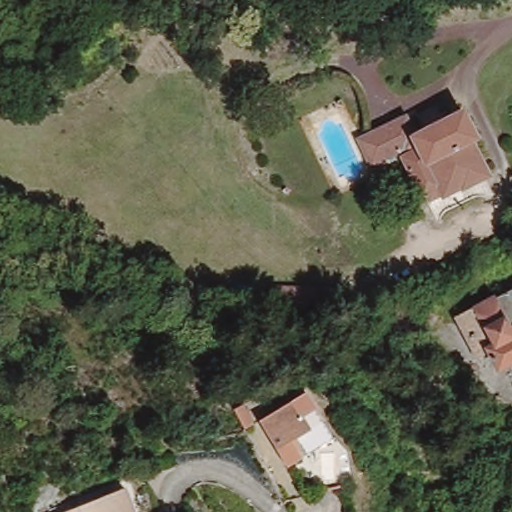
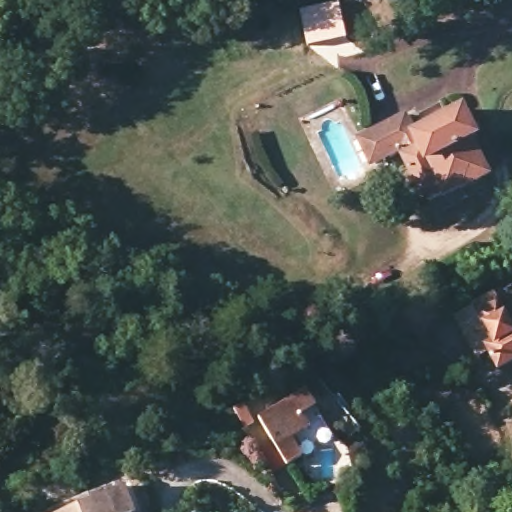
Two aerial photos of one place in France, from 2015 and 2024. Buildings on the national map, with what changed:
new [(338,2),(345,37),(306,45),(299,10),(338,2)]
unchanged [(403,157),(397,147),(381,154),(365,162),(356,144),(372,136),(404,122),(405,124),(407,127),(408,130),(410,134),(411,137),(413,141),(422,137),(455,119),(470,144),(463,147),(481,181),(428,207),(423,198),(420,200),(414,188),(405,171),(399,160),(403,157)]
unchanged [(460,316),(512,290),(512,360),(498,367),(488,348),(479,353),(460,316)]
unchanged [(330,439),(290,457),(262,406),(304,382),(330,439)]
unchanged [(132,512),(81,512),(125,494),(132,512)]

